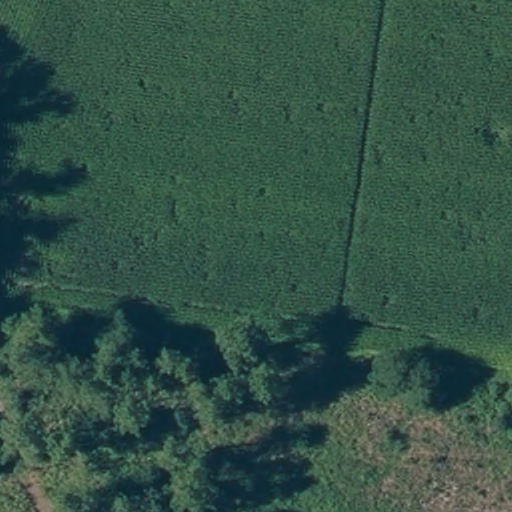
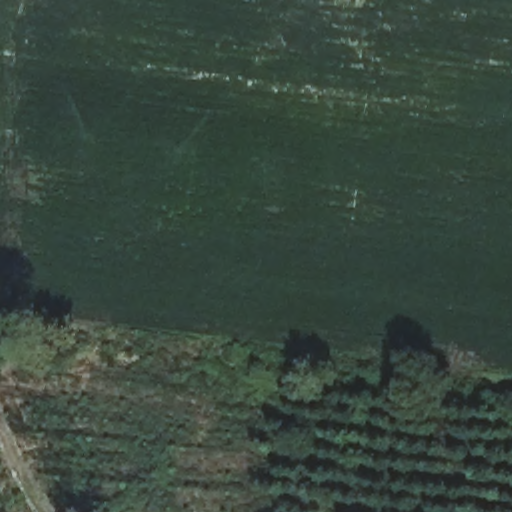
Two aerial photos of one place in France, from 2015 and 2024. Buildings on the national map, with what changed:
[]

